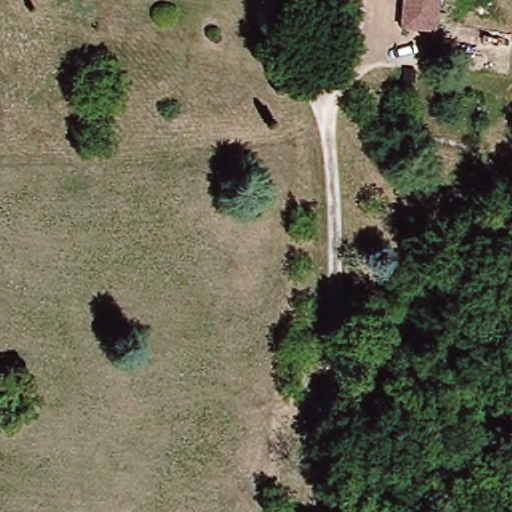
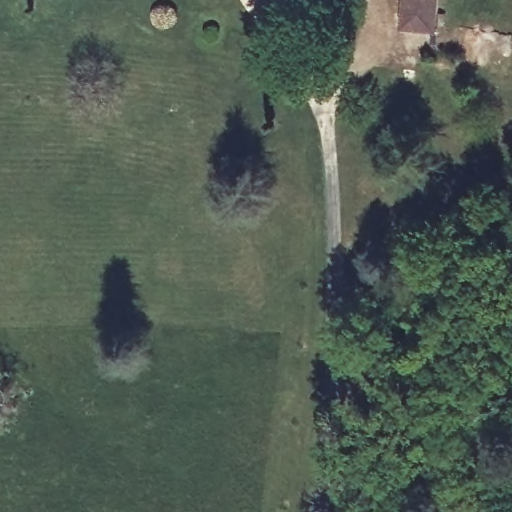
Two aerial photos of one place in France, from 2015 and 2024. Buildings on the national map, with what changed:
unchanged [(433,33),(400,29),(404,0),(437,0),(433,33)]

